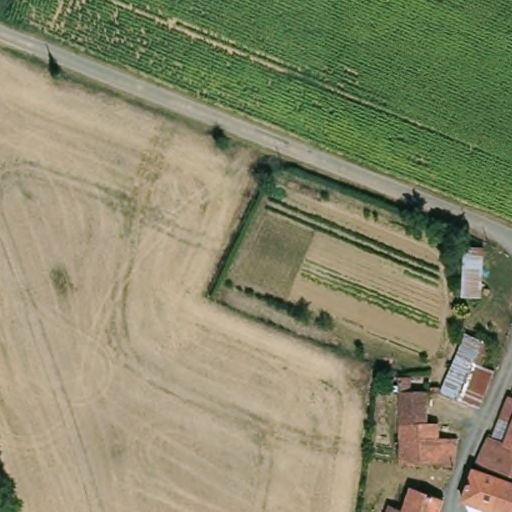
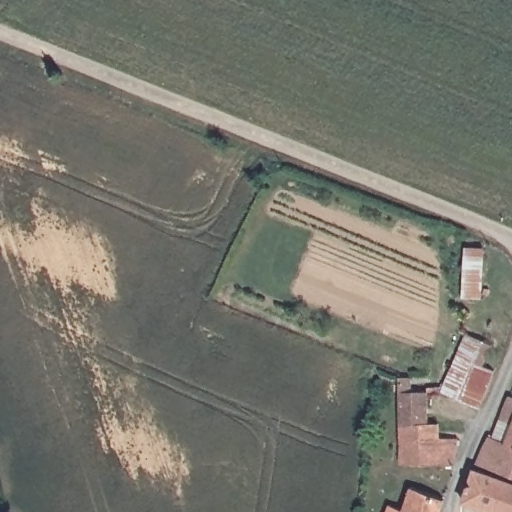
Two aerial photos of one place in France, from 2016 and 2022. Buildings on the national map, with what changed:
unchanged [(485,341),(501,348),(491,374),(487,383),(477,408),(440,393),(455,355),(450,350),(460,329),(485,341)]
unchanged [(427,378),(427,427),(396,428),(396,379),(427,378)]
unchanged [(396,467),(396,428),(427,427),(430,427),(439,427),(437,440),(452,441),(454,465),(396,467)]
unchanged [(512,427),(512,468),(500,465),(480,460),(490,434),(506,441),(512,427)]
unchanged [(512,512),(503,512),(465,498),(478,466),(512,481),(512,512)]
unchanged [(403,504),(388,498),(382,496),(387,481),(395,484),(397,485),(414,489),(445,499),(440,512),(400,512),(403,504)]
unchanged [(389,509),(399,512),(388,512),(389,509)]

